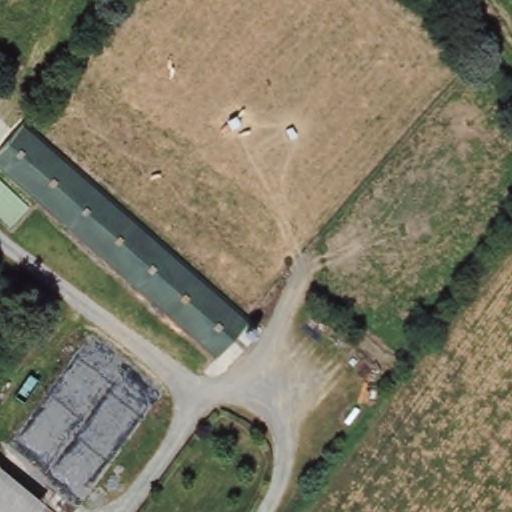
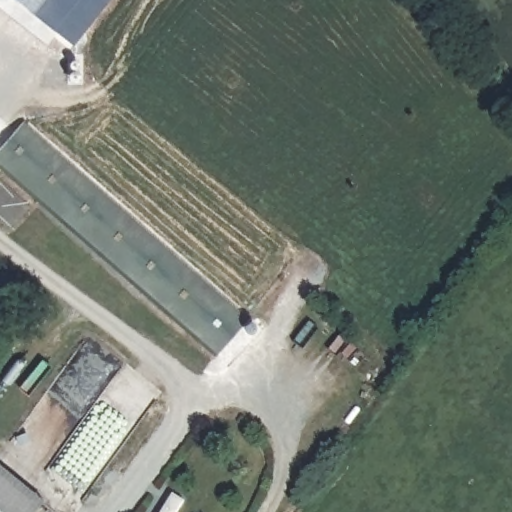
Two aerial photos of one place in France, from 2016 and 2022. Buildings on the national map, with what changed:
new [(16,0),(125,0),(77,55),(16,0)]
unchanged [(213,357),(0,171),(0,146),(37,104),(264,302),(213,357)]
unchanged [(36,512),(0,512),(0,459),(47,498),(36,512)]

